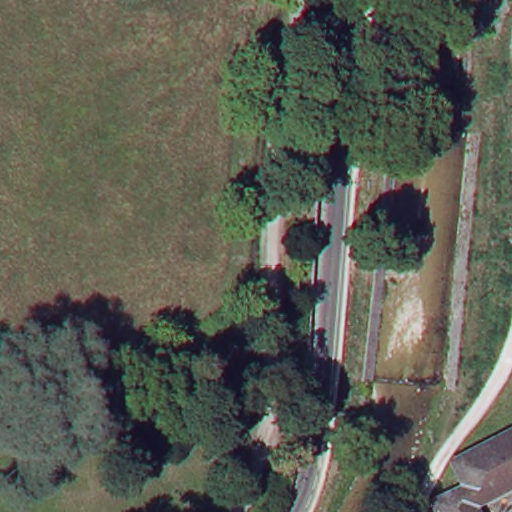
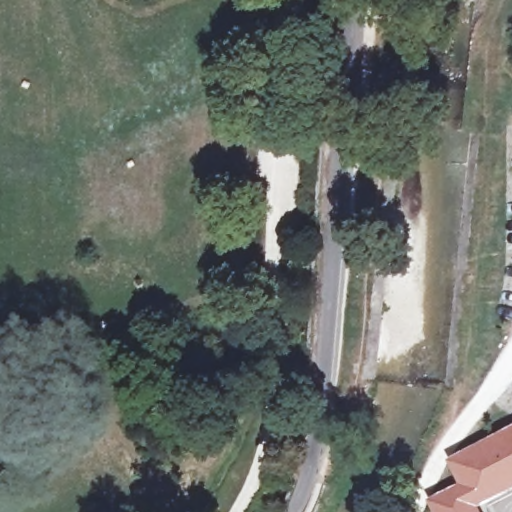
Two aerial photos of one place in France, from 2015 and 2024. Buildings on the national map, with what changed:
unchanged [(480,512),(440,512),(436,504),(469,486),(455,462),(512,433),(512,490),(478,507),(480,512)]

